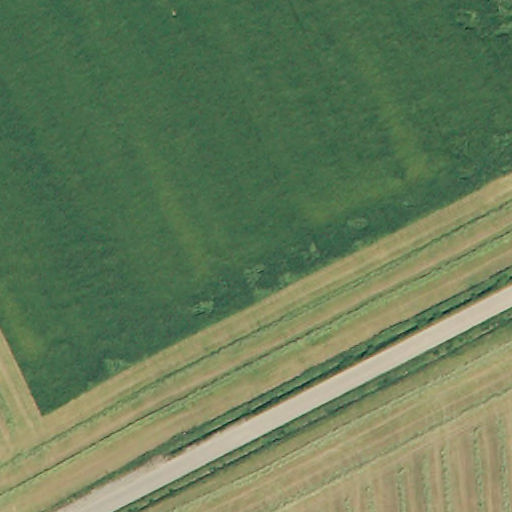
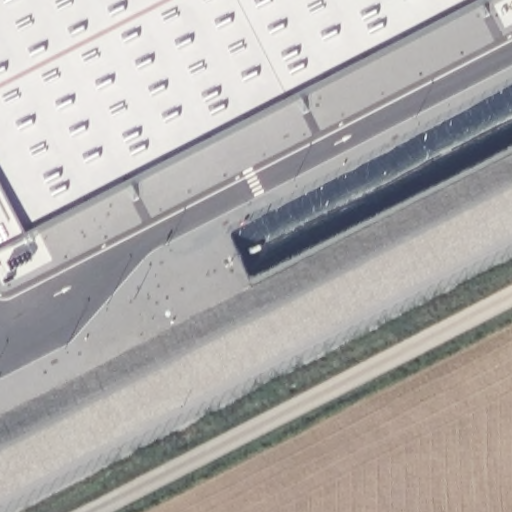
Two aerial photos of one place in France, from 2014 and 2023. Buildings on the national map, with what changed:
new [(0,256),(0,0),(499,0),(0,256)]

